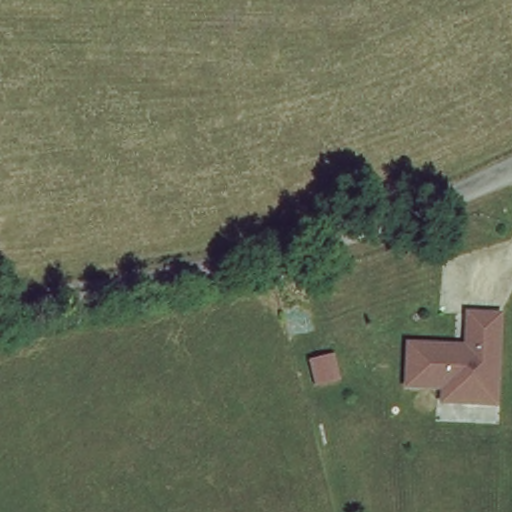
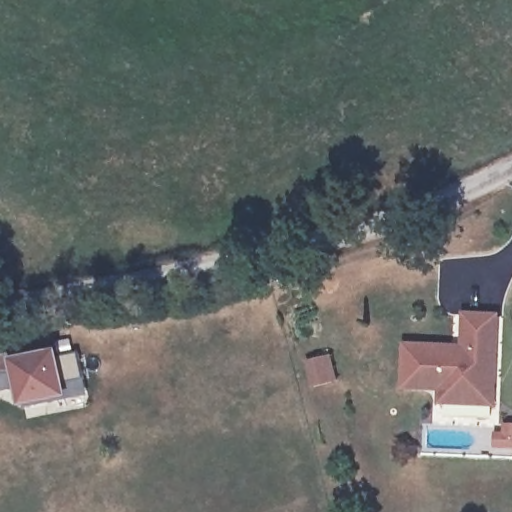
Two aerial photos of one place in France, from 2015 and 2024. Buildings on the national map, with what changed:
unchanged [(475,400),(440,399),(440,385),(404,384),(406,342),(464,345),(465,312),(497,313),(494,385),(493,401),(475,400)]
new [(25,406),(22,391),(15,392),(0,395),(0,358),(21,354),(23,364),(58,357),(59,360),(81,356),(86,382),(88,394),(67,398),(25,406)]

